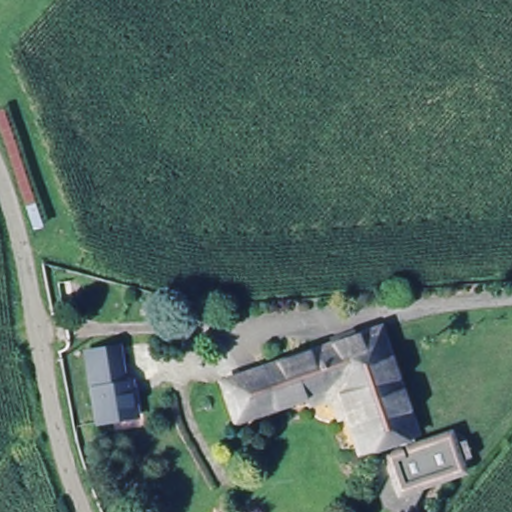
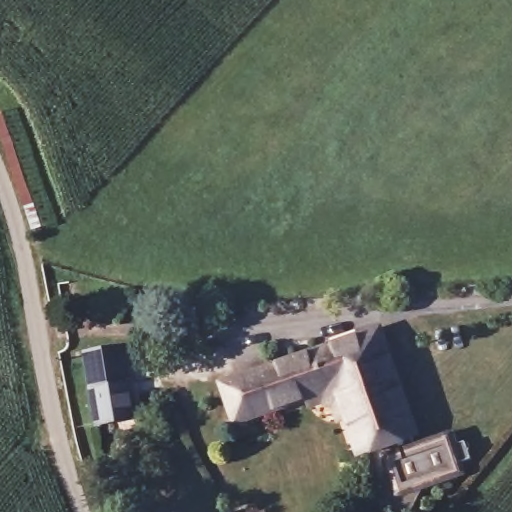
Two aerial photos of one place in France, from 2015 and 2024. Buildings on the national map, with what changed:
unchanged [(381,324),(419,424),(407,448),(384,454),(374,458),(359,459),(333,397),(231,428),(220,376),(381,324)]
unchanged [(122,339),(137,418),(95,429),(80,346),(122,339)]
unchanged [(407,448),(419,424),(445,427),(458,478),(415,494),(416,502),(405,511),(398,512),(388,509),(380,504),(379,498),(380,489),(393,480),(384,454),(407,448)]

